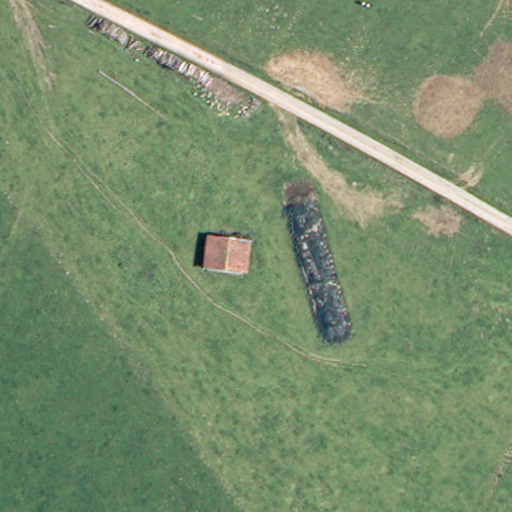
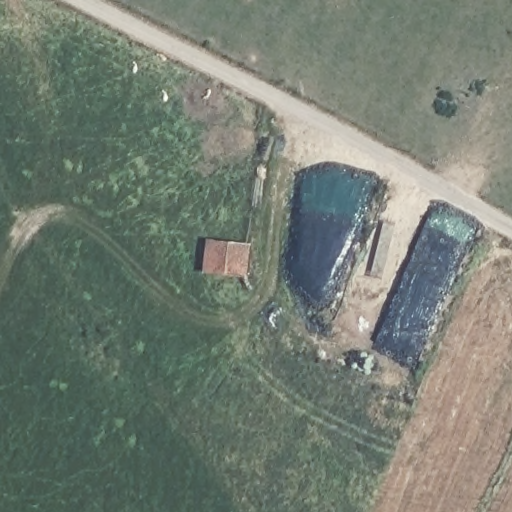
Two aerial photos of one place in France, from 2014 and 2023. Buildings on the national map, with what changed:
unchanged [(249,245),(243,276),(210,270),(214,239),(249,245)]

